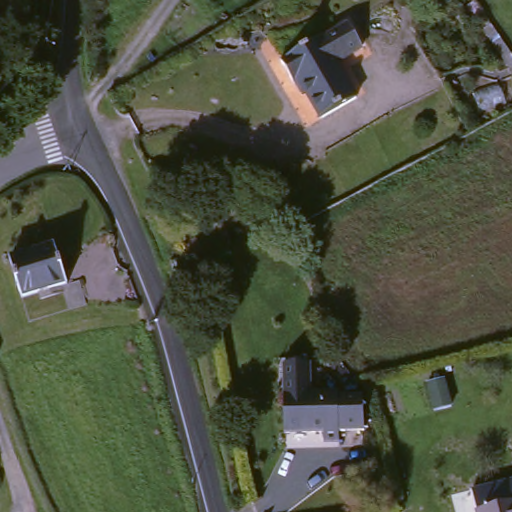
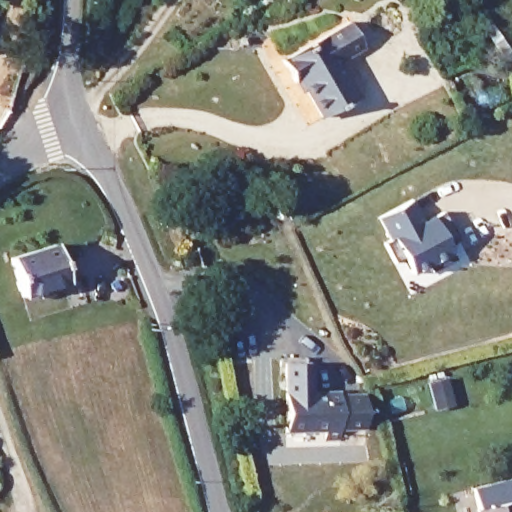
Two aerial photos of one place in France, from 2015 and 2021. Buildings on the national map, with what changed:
unchanged [(486,37),(499,28),(512,47),(512,76),(486,37)]
unchanged [(348,32),(362,55),(336,72),(353,105),(322,122),(301,88),(292,93),(282,72),(348,32)]
new [(420,200),(431,221),(448,211),(463,240),(454,245),(462,260),(437,273),(434,267),(414,278),(410,259),(401,263),(391,244),(397,241),(385,218),(420,200)]
unchanged [(63,287),(19,303),(6,266),(51,251),(63,287)]
unchanged [(287,403),(287,373),(313,373),(313,403),(365,402),(364,440),(341,439),(341,447),(323,448),(322,442),(287,442),(287,403)]

